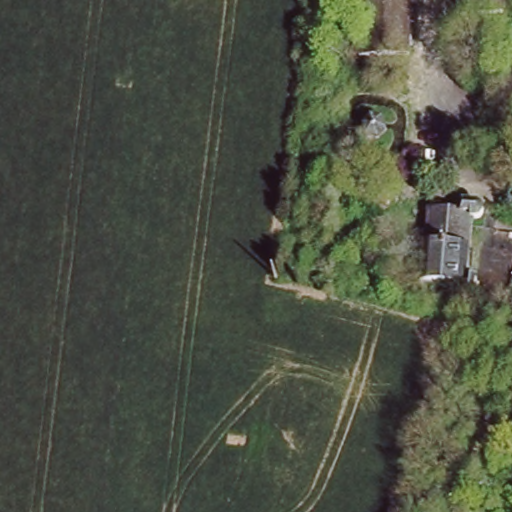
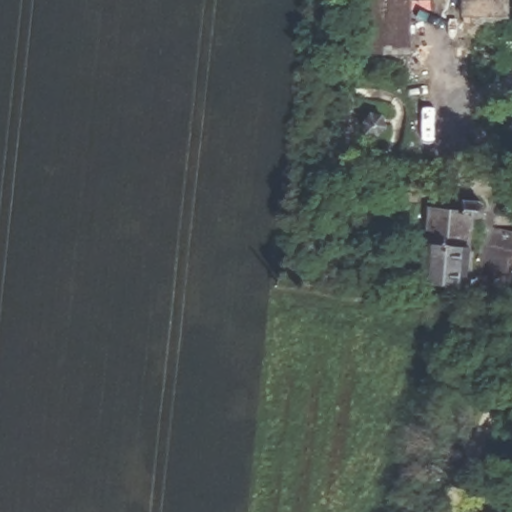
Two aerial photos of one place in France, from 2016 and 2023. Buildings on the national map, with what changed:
unchanged [(408,0),(408,52),(358,51),(359,0),(408,0)]
unchanged [(501,0),(500,14),(460,14),(460,0),(501,0)]
unchanged [(405,274),(422,275),(427,208),(457,209),(457,200),(480,201),(483,204),(483,210),(478,216),(470,216),(466,276),(475,276),(473,296),(458,295),(458,285),(441,285),(440,290),(420,290),(421,286),(403,285),(405,274)]

